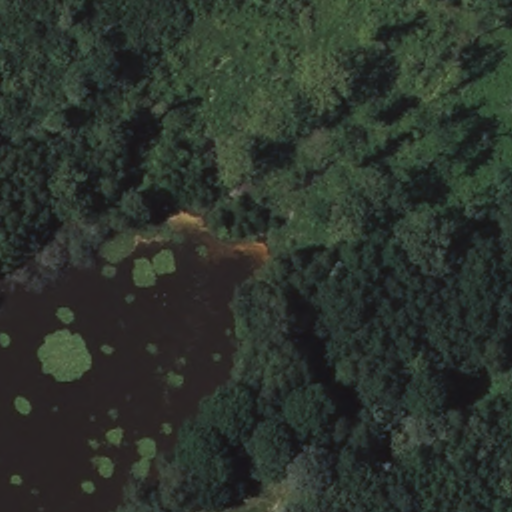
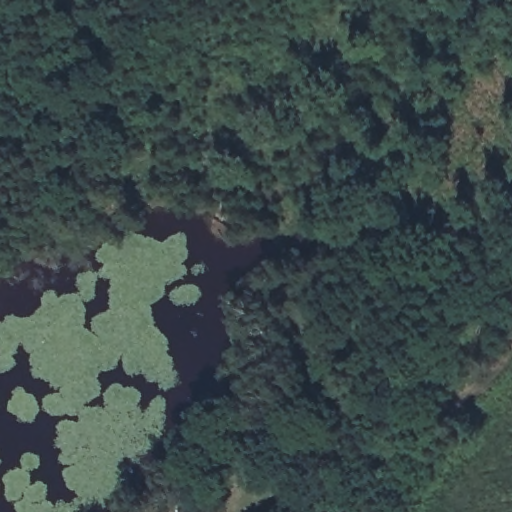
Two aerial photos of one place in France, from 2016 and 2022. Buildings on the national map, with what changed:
[]

